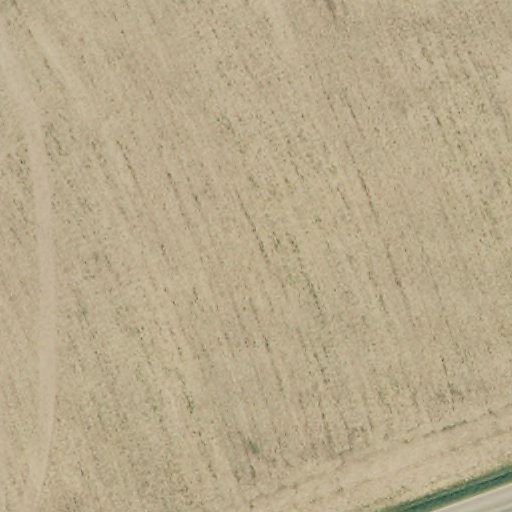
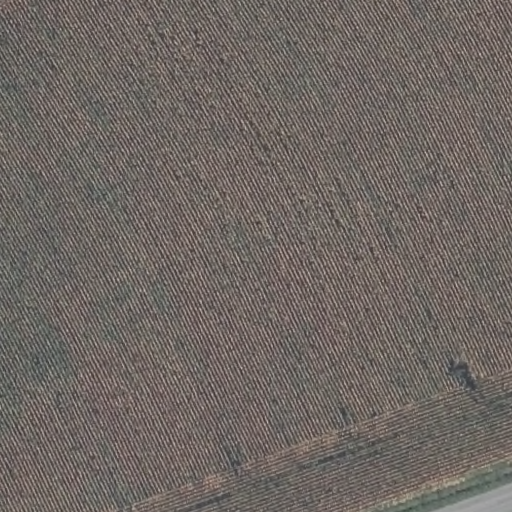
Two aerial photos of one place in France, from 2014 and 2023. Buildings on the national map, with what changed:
[]

